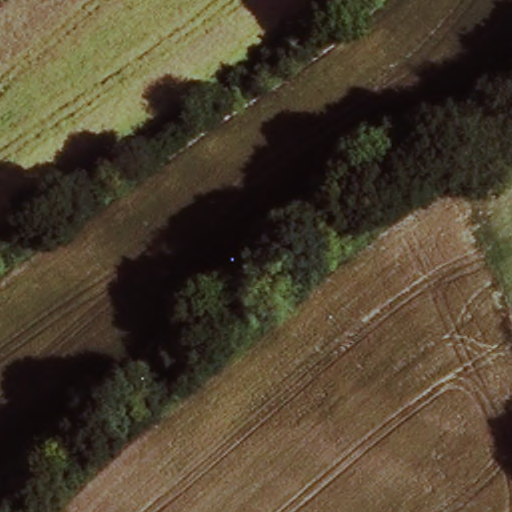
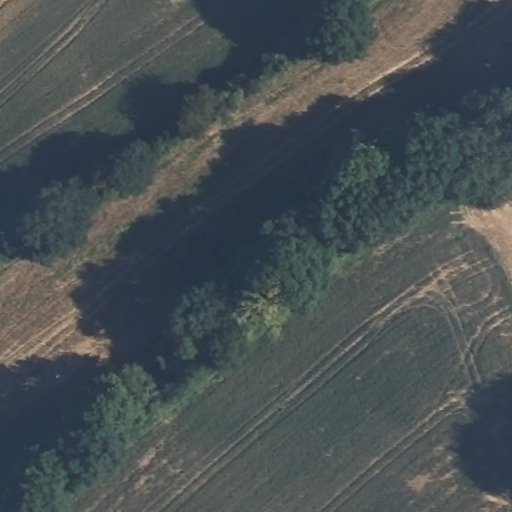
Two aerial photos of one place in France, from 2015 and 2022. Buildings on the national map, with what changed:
[]

